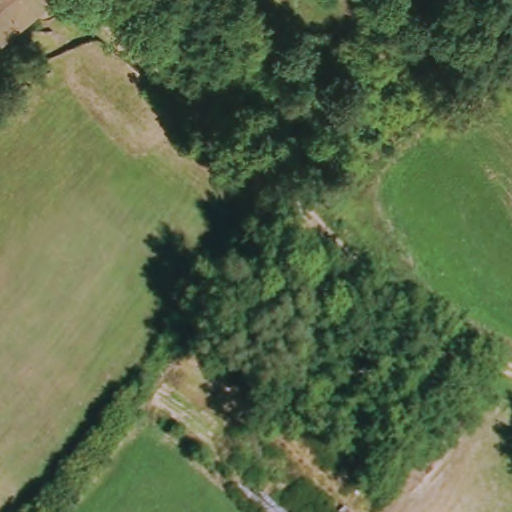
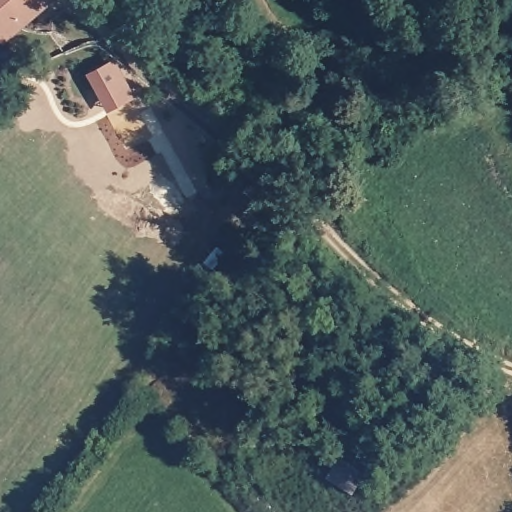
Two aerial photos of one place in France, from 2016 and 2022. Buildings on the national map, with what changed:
unchanged [(0,39),(0,0),(46,0),(3,42),(0,39)]
new [(115,59),(135,96),(107,111),(86,73),(115,59)]

